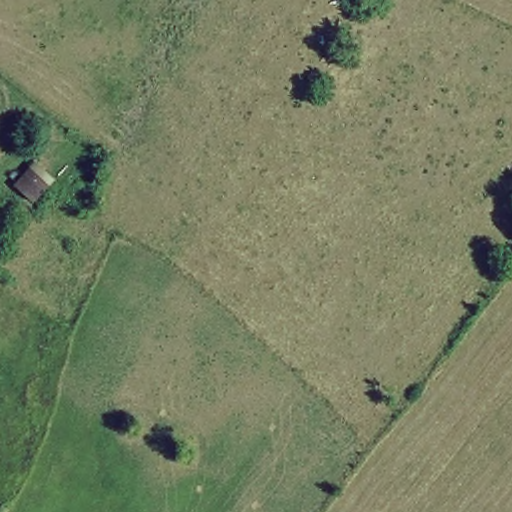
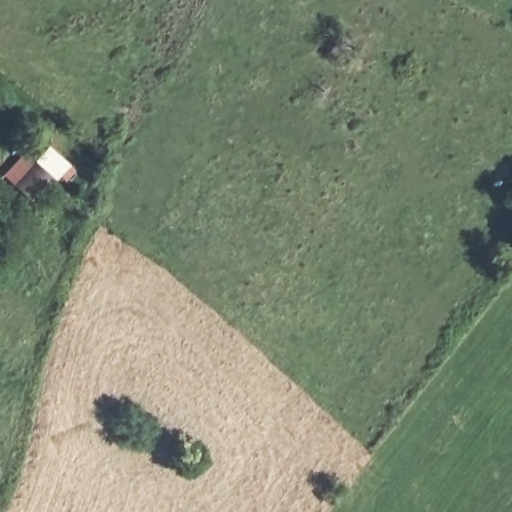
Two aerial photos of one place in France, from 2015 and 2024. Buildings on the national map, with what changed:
unchanged [(39,160),(63,183),(39,208),(17,183),(39,160)]

